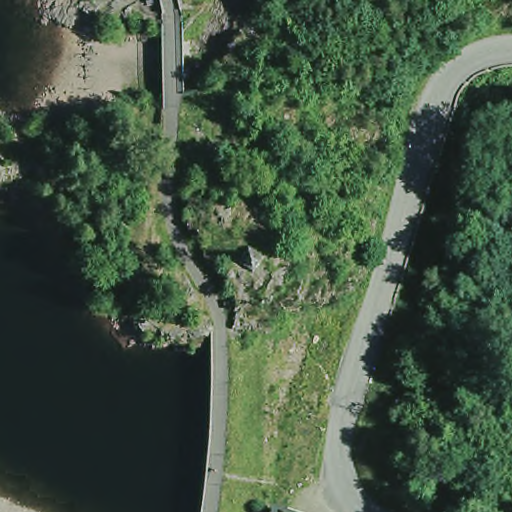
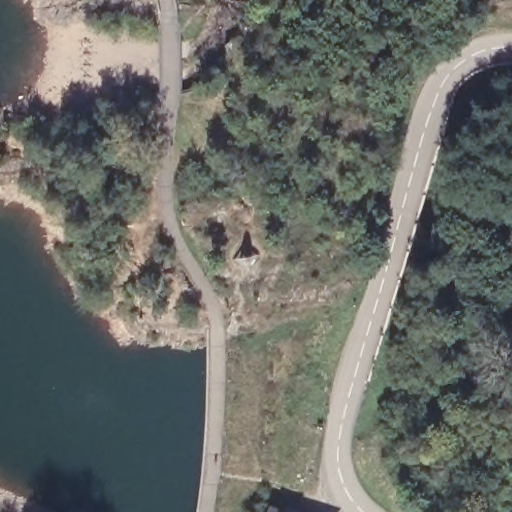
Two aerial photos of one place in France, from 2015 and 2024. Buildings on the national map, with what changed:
unchanged [(268,505),(288,512),(267,512),(268,505)]

